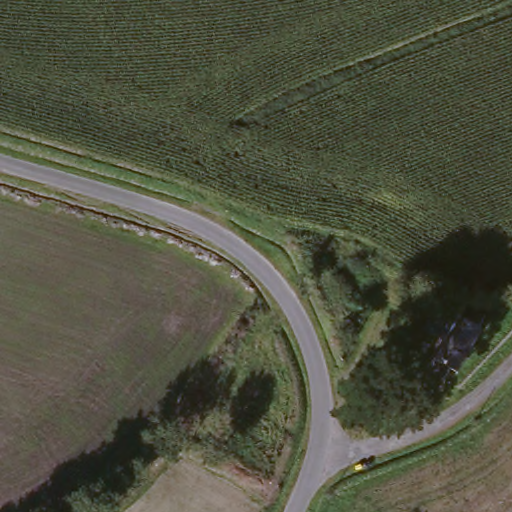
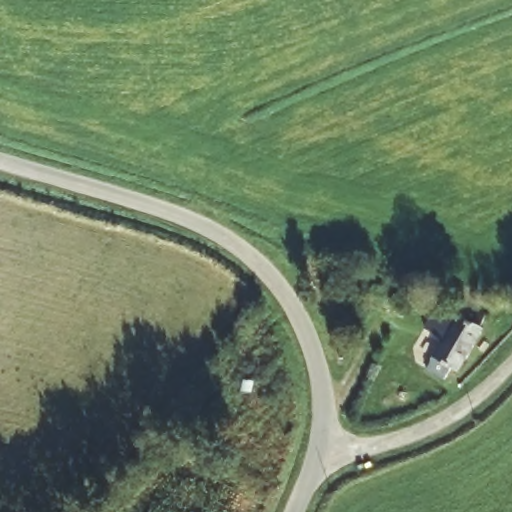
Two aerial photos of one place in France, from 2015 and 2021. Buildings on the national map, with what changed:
unchanged [(456,315),(476,326),(444,380),(424,368),(456,315)]

